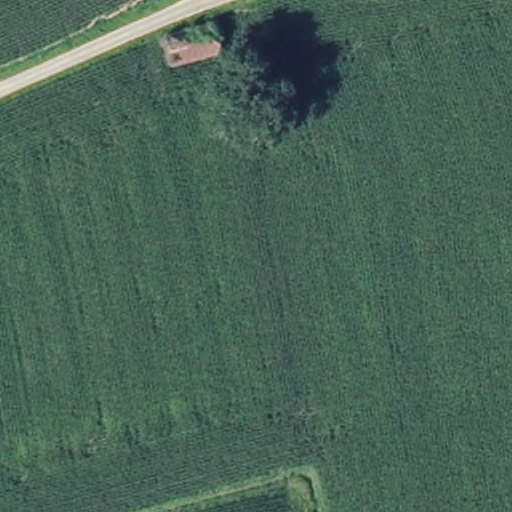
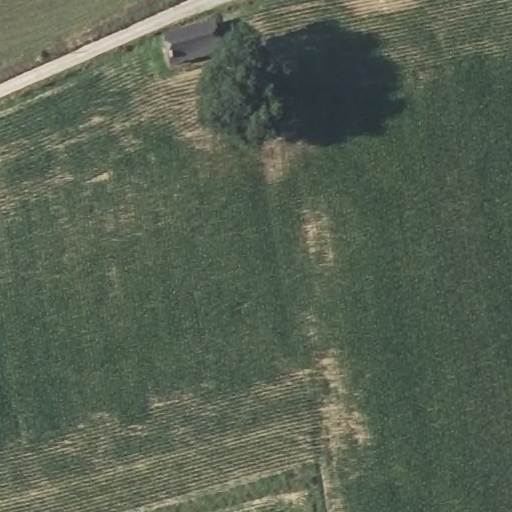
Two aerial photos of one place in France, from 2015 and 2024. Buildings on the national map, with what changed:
unchanged [(222,60),(174,73),(168,44),(215,33),(222,60)]

